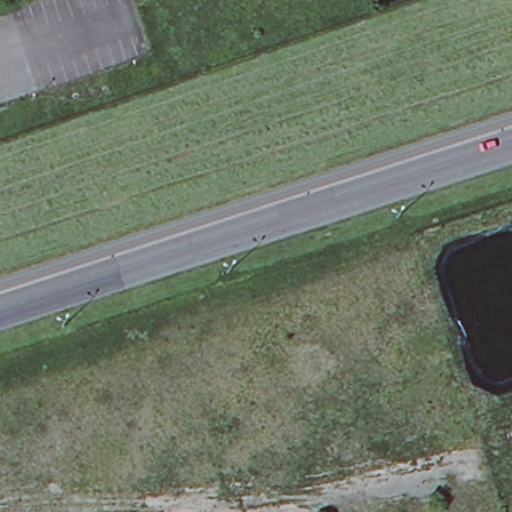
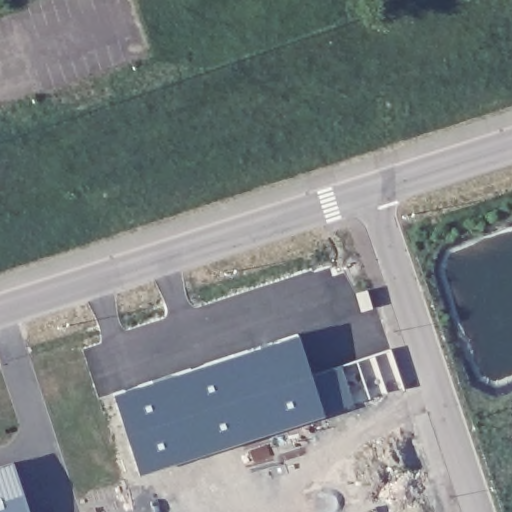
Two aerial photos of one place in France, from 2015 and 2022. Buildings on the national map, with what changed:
new [(367,288),(372,305),(362,309),(357,291),(367,288)]
new [(297,333),(322,410),(140,469),(115,392),(297,333)]
new [(30,512),(0,512),(0,465),(14,460),(30,512)]

